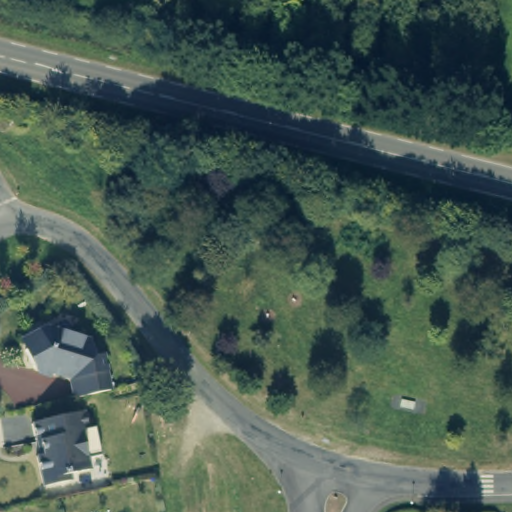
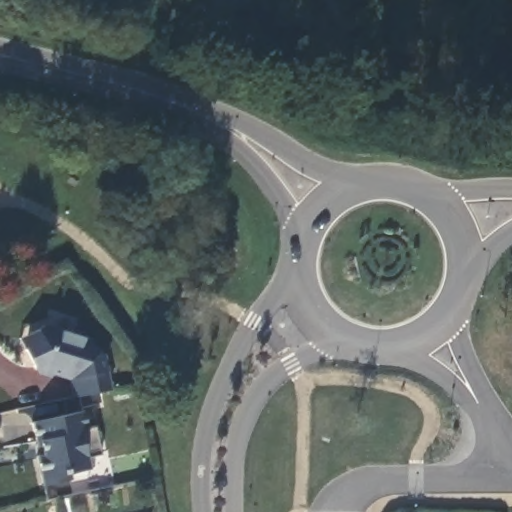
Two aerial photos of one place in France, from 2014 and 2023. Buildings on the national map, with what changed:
unchanged [(37,371),(27,352),(21,341),(32,335),(44,328),(92,342),(95,358),(104,356),(111,391),(76,398),(71,381),(37,371)]
unchanged [(85,413),(89,431),(97,428),(103,457),(90,460),(92,471),(72,476),(74,482),(46,487),(39,457),(45,456),(42,443),(39,445),(35,425),(85,413)]

